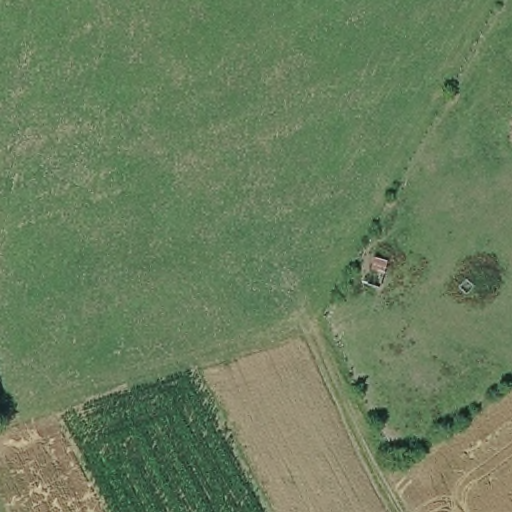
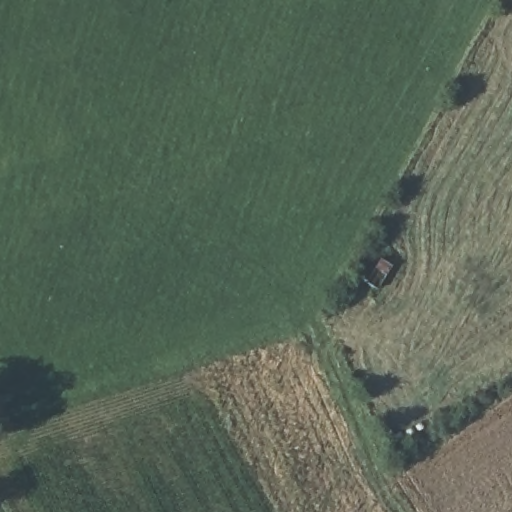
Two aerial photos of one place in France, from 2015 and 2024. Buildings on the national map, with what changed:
unchanged [(376,291),(356,285),(365,252),(386,258),(376,291)]

